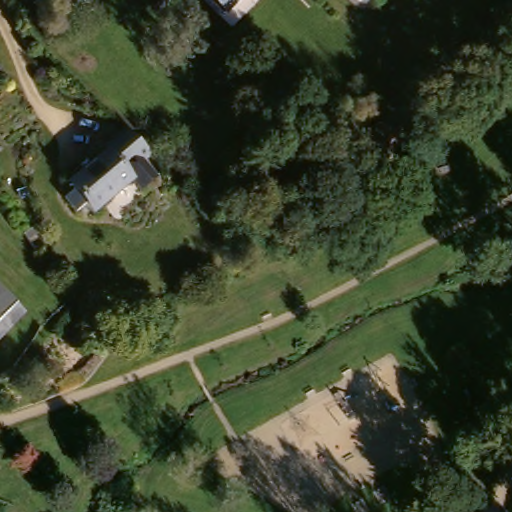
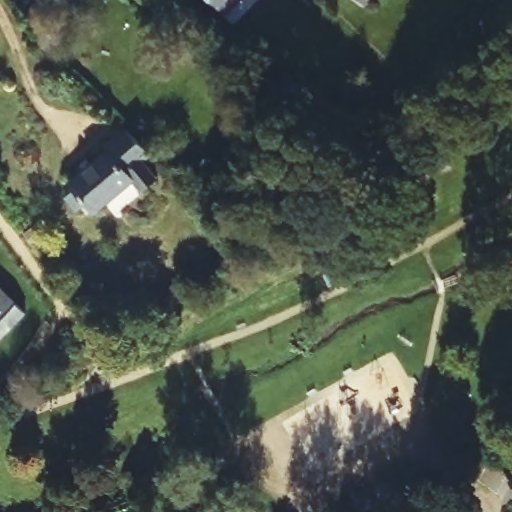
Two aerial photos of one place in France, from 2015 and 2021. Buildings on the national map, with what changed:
unchanged [(44,0),(69,0),(69,4),(44,0)]
unchanged [(157,0),(168,0),(163,5),(157,0)]
unchanged [(209,0),(235,0),(222,13),(209,0)]
unchanged [(352,0),(366,0),(361,7),(352,0)]
unchanged [(110,141),(130,124),(141,135),(156,148),(147,155),(153,162),(161,172),(146,185),(138,175),(99,209),(92,200),(91,199),(88,201),(81,207),(70,193),(76,187),(79,185),(73,179),(113,145),(110,141)]
unchanged [(14,307),(0,321),(0,293),(14,307)]

